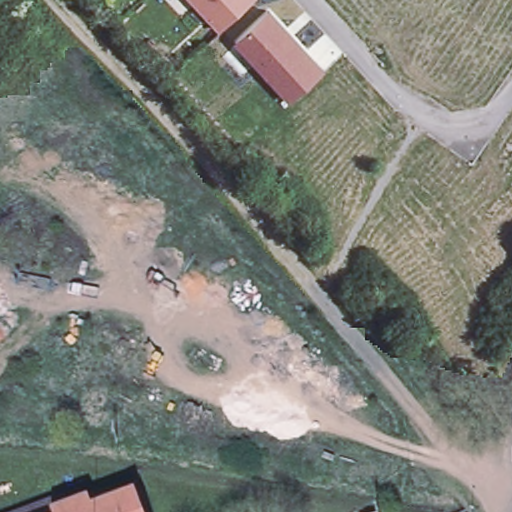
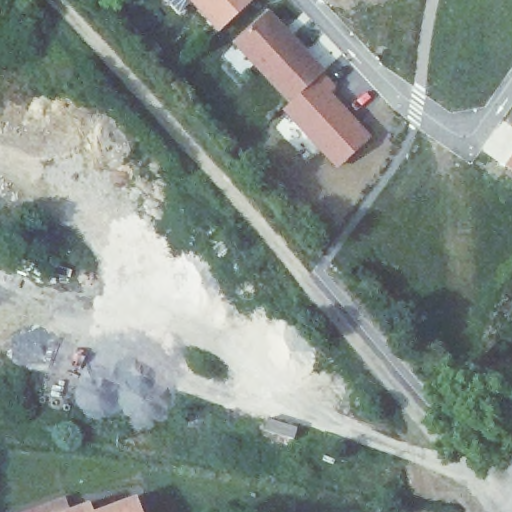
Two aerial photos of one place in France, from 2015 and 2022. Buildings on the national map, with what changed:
unchanged [(212,28),(186,0),(242,0),(237,4),(212,28)]
unchanged [(327,70),(291,108),(232,45),(269,10),(327,70)]
new [(338,84),(330,90),(372,138),(337,169),(285,112),(291,108),(327,70),(338,84)]
new [(507,165),(512,159),(512,169),(507,165)]
unchanged [(133,499),(139,512),(98,512),(133,499)]
unchanged [(47,507),(60,502),(64,512),(34,512),(47,507)]
unchanged [(91,503),(95,512),(67,512),(91,503)]

